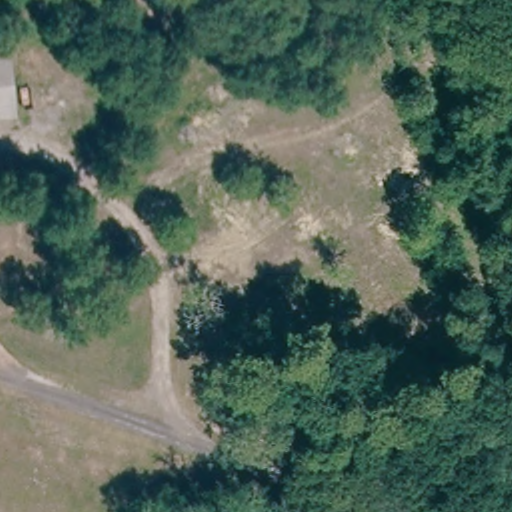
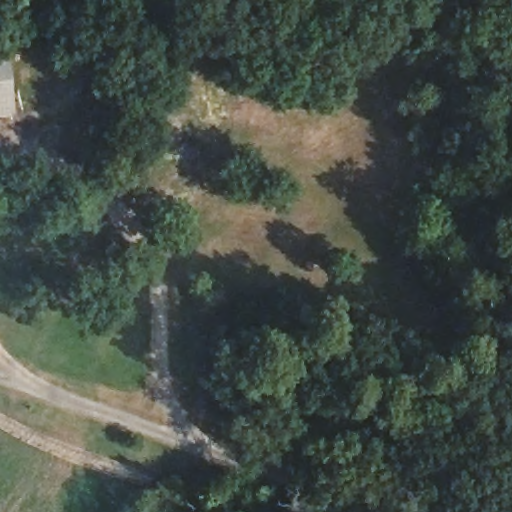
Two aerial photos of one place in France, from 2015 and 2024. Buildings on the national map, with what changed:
unchanged [(20,117),(0,118),(0,45),(14,44),(20,117)]

